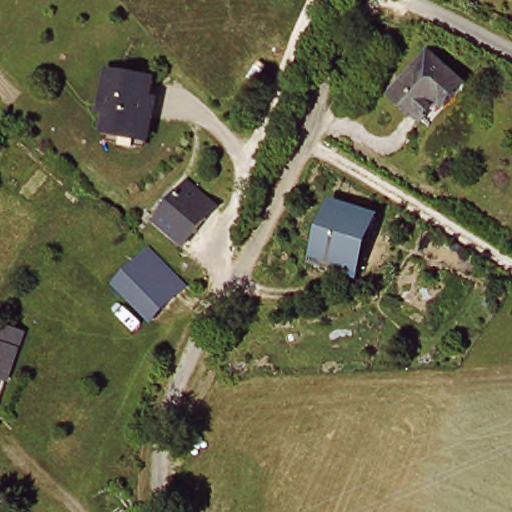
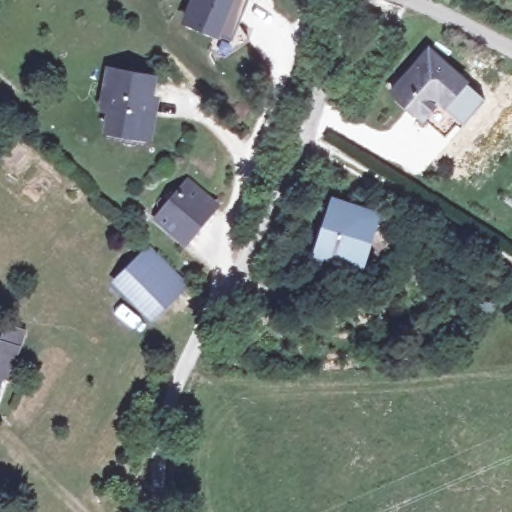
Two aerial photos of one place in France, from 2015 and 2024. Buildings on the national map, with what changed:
new [(232,43),(220,40),(182,24),(191,0),(249,0),(232,43)]
unchanged [(430,44),(464,73),(445,98),(438,92),(420,112),(394,89),(430,44)]
unchanged [(119,114),(109,101),(115,76),(159,81),(153,99),(161,101),(157,117),(150,117),(145,135),(115,131),(119,114)]
unchanged [(214,195),(204,208),(208,210),(186,238),(157,218),(189,178),(214,195)]
unchanged [(337,204),(382,216),(375,238),(364,237),(354,266),(321,257),(337,204)]
unchanged [(115,285),(140,261),(154,248),(192,283),(179,296),(154,320),(115,285)]
unchanged [(2,339),(18,342),(6,374),(0,390),(0,342),(2,339)]

